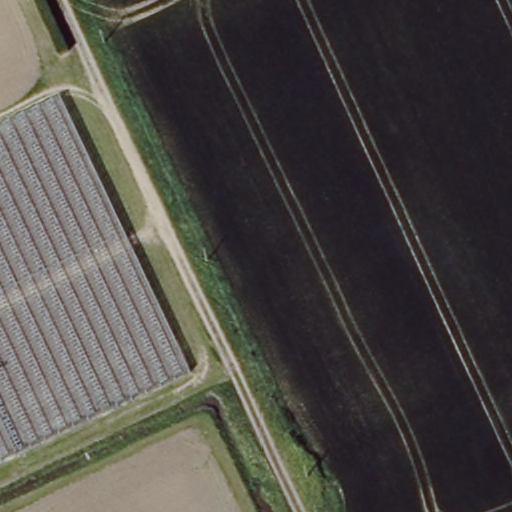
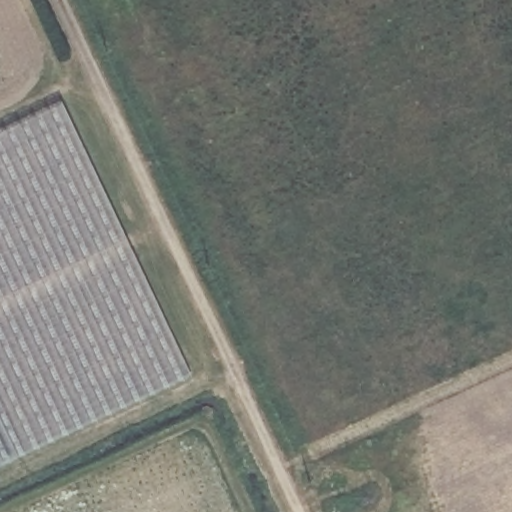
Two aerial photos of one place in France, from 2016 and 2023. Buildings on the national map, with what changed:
unchanged [(0,463),(0,128),(61,99),(191,370),(0,463)]

